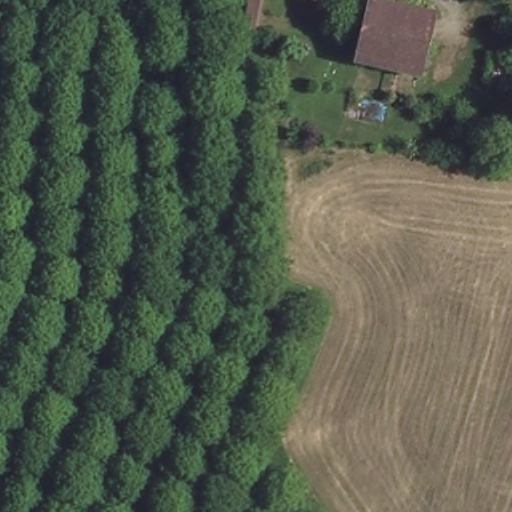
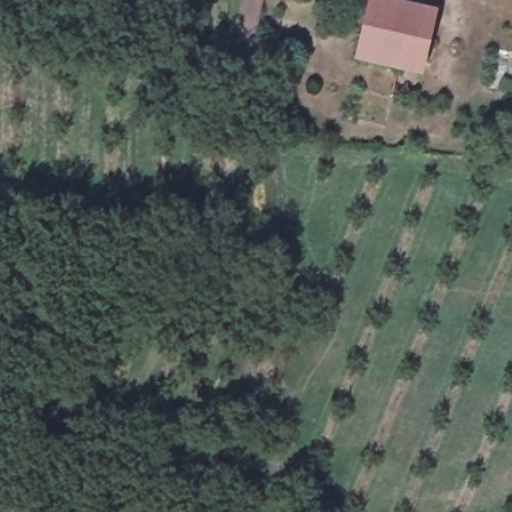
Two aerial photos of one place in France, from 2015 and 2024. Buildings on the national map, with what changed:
unchanged [(408,94),(354,82),(372,0),(395,0),(427,8),(408,94)]
unchanged [(262,8),(254,38),(239,34),(245,6),(262,8)]

